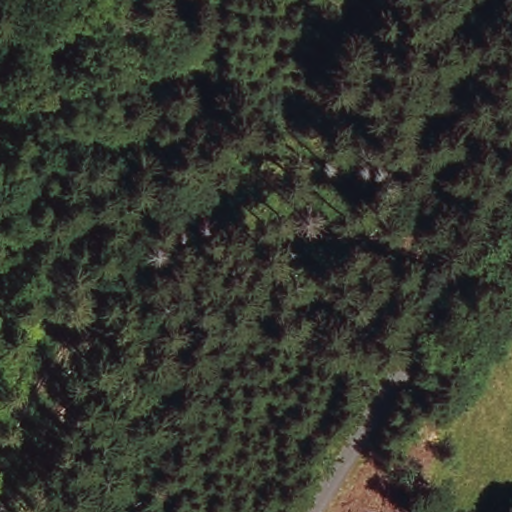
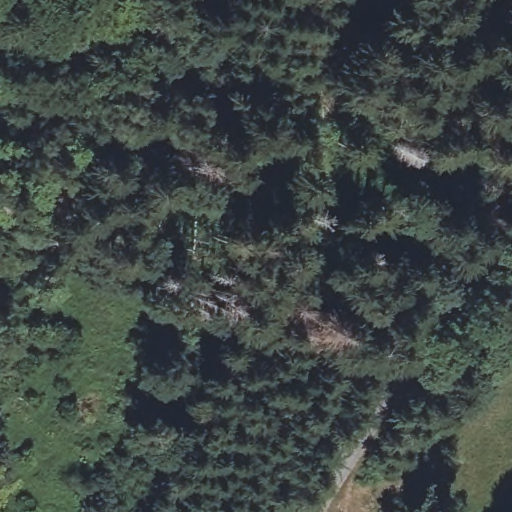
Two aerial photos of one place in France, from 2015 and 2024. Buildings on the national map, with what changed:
[]

